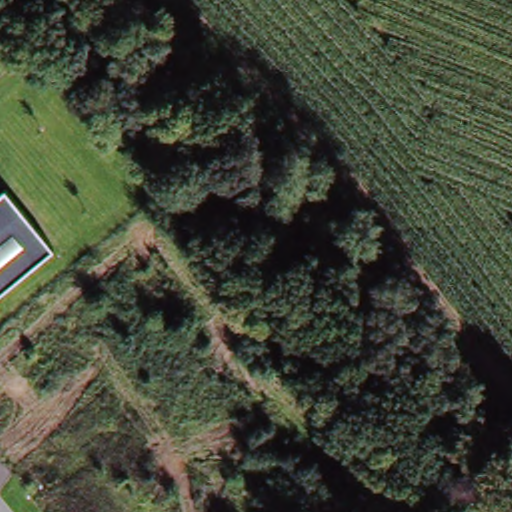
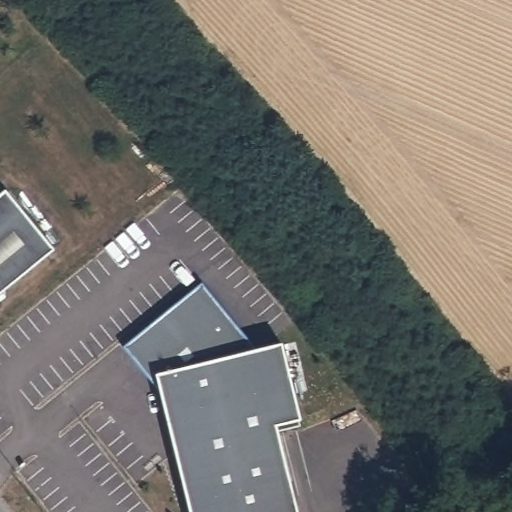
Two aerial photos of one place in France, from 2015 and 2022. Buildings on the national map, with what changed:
unchanged [(54,251),(0,296),(0,195),(5,190),(54,251)]
new [(286,352),(306,428),(281,435),(300,512),(192,512),(163,398),(162,398),(148,380),(128,355),(206,291),(261,358),(286,352)]

